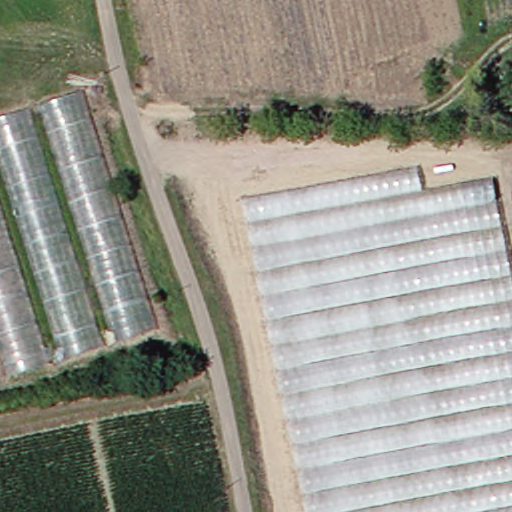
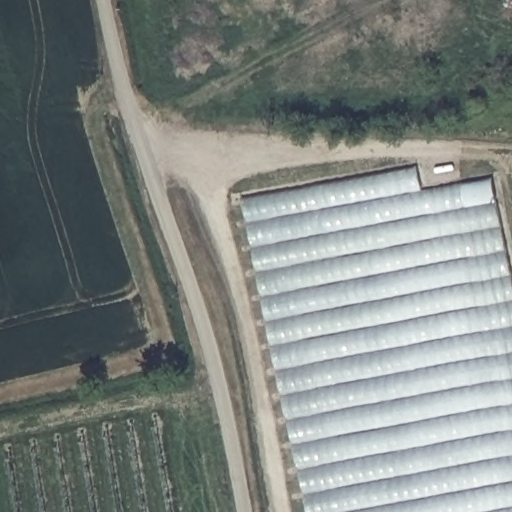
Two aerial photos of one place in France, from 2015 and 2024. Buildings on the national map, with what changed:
demolished [(10,377),(0,348),(0,117),(80,93),(159,332),(10,377)]
unchanged [(414,166),(420,192),(492,179),(512,279),(512,512),(301,512),(237,197),(414,166)]

